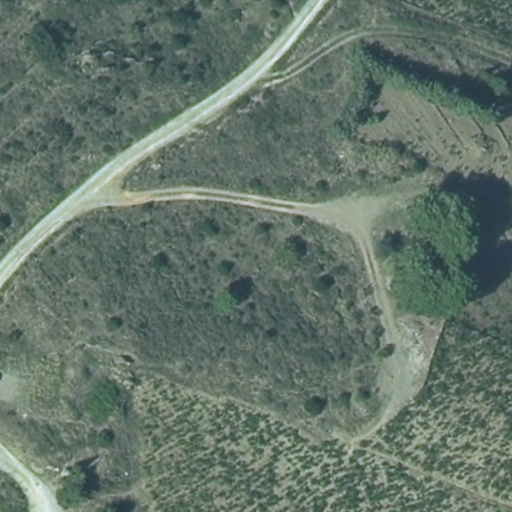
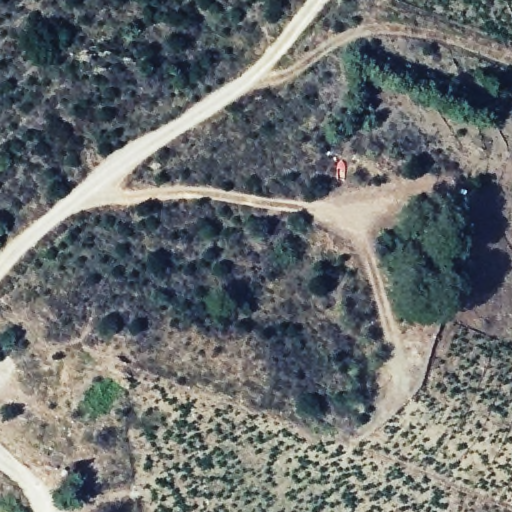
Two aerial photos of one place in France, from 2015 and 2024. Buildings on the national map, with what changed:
unchanged [(432,261),(418,259),(421,239),(437,241),(432,261)]

